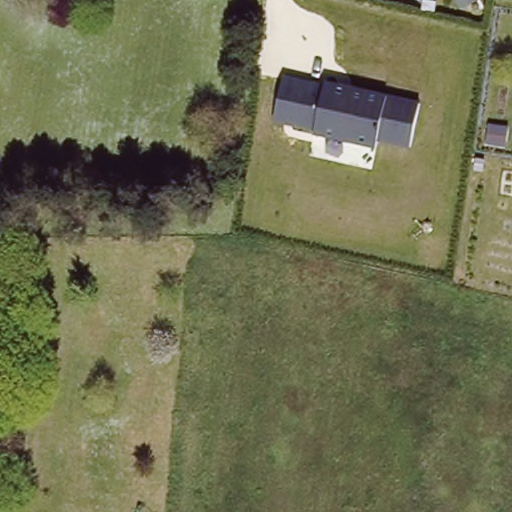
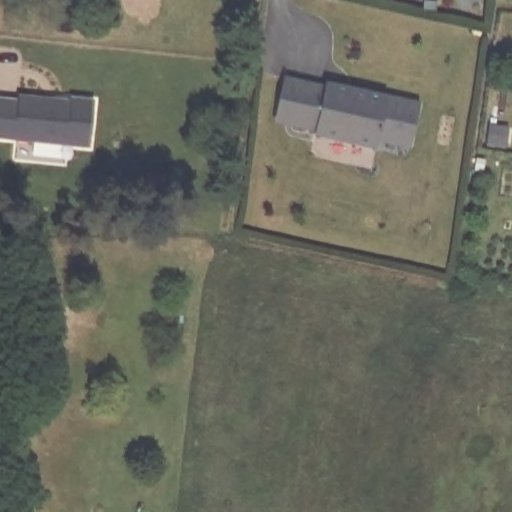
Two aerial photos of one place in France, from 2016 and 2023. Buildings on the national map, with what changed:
unchanged [(281,76),(321,85),(322,74),(347,79),(346,89),(419,101),(411,148),(376,139),(374,147),(311,134),(311,131),(271,124),(281,76)]
new [(19,94),(71,99),(71,96),(94,99),(89,148),(0,139),(0,97),(19,99),(19,94)]

